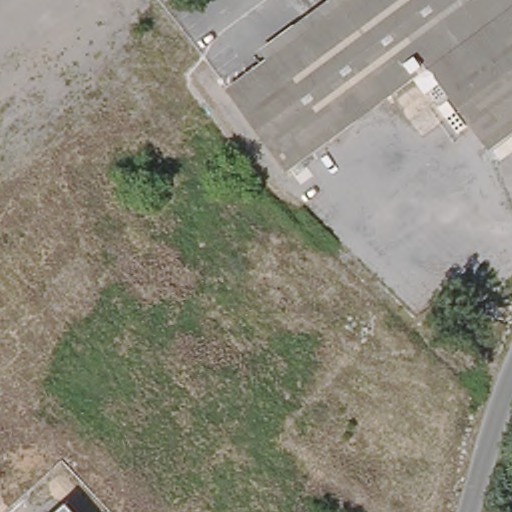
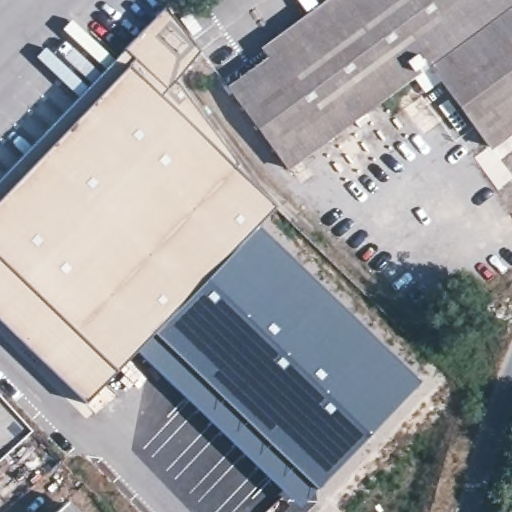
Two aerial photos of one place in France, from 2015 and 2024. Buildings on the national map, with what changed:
unchanged [(512,131),(490,147),(427,65),(367,110),(355,120),(289,169),(228,87),(268,59),(348,0),(512,0),(512,131)]
unchanged [(268,59),(261,48),(326,0),(348,0),(268,59)]
new [(127,70),(114,57),(165,6),(199,50),(173,81),(237,166),(233,170),(274,207),(84,403),(0,322),(0,197),(127,70)]
new [(114,57),(127,70),(0,197),(0,172),(114,57)]
new [(367,110),(373,119),(387,108),(409,138),(350,183),(327,154),(360,128),(355,120),(367,110)]
new [(257,225),(418,381),(316,490),(298,507),(135,350),(257,225)]
unchanged [(55,512),(68,500),(78,512),(55,512)]

